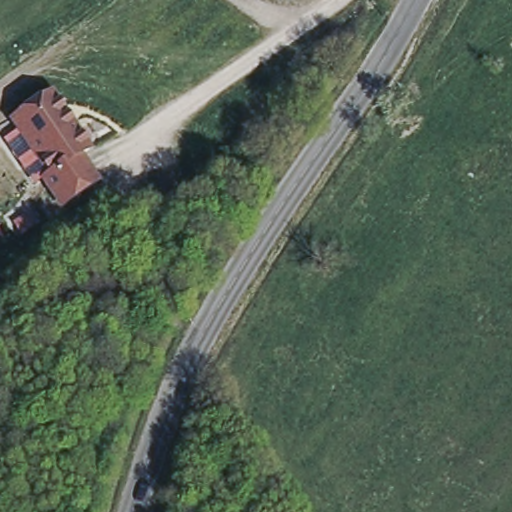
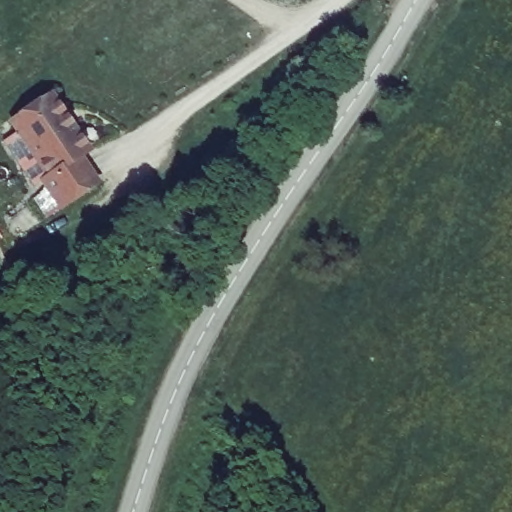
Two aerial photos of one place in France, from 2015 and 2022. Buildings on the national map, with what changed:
unchanged [(77,157),(95,183),(59,208),(41,181),(47,177),(10,121),(50,95),(87,150),(77,157)]

